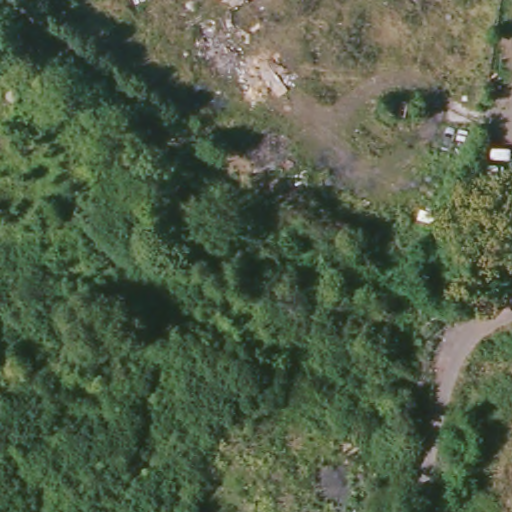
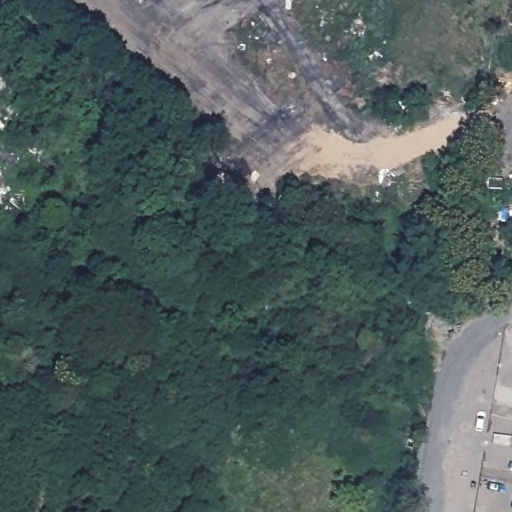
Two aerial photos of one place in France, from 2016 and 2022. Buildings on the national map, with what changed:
unchanged [(415,434),(414,442),(409,440),(410,432),(415,434)]

